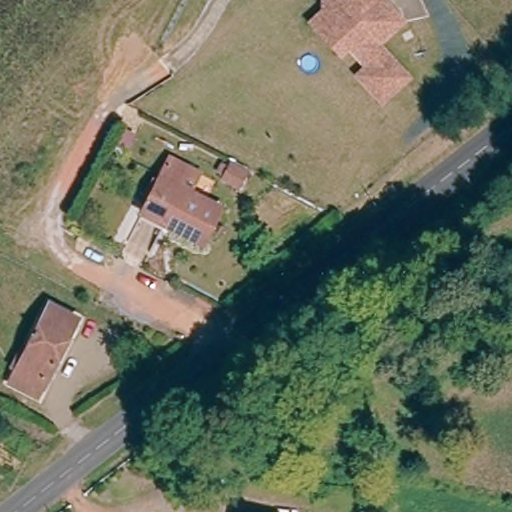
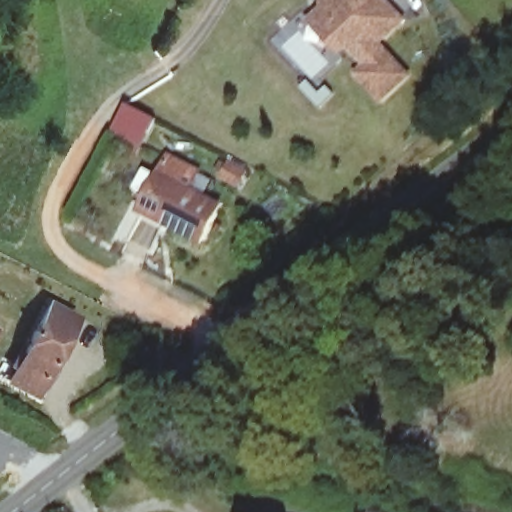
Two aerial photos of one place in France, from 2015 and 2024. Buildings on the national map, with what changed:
unchanged [(384,41),(380,45),(407,80),(381,102),(359,76),(367,67),(349,45),(341,54),(314,22),(327,11),(328,0),(384,0),(405,24),(384,41)]
unchanged [(199,244),(139,214),(159,175),(167,159),(194,172),(186,190),(218,206),(199,244)]
unchanged [(7,380),(44,306),(73,322),(34,395),(7,380)]

